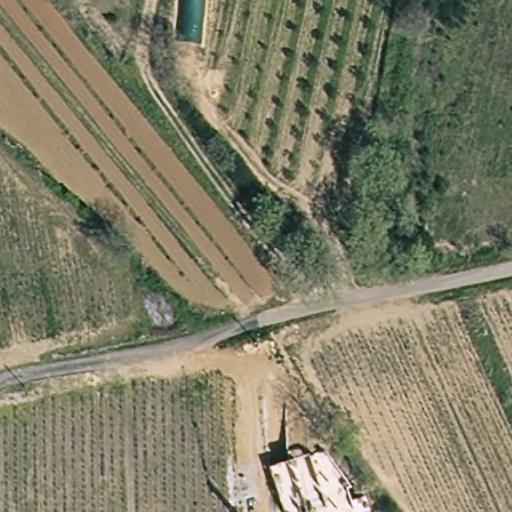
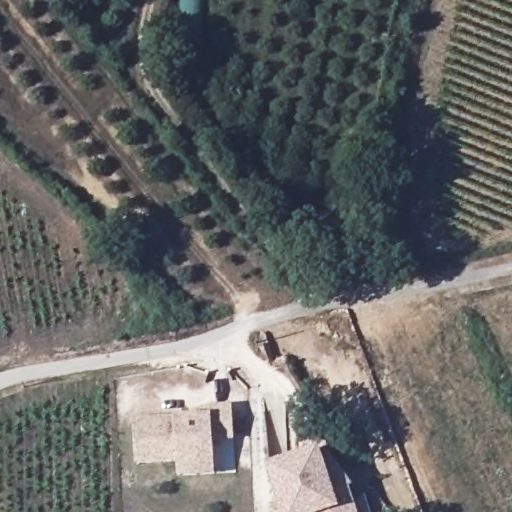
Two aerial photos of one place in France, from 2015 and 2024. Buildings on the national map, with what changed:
unchanged [(197,42),(180,40),(184,0),(202,0),(197,42)]
new [(211,443),(211,477),(175,478),(176,463),(132,465),(131,417),(175,416),(208,414),(207,405),(232,404),(233,443),(211,443)]
new [(319,448),(324,465),(336,462),(356,512),(279,512),(265,465),(319,448)]

